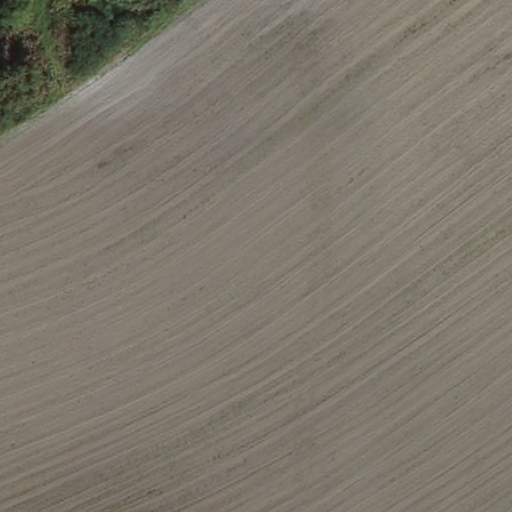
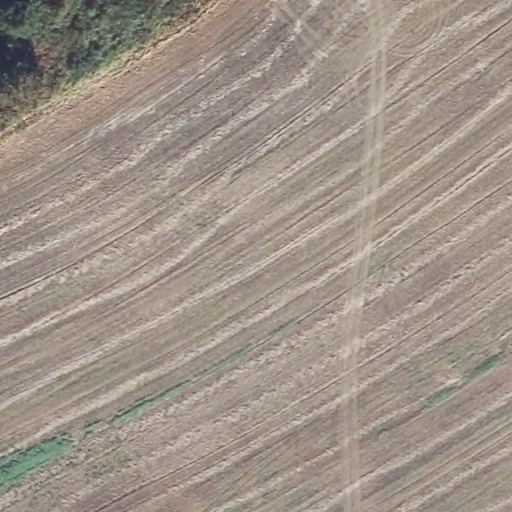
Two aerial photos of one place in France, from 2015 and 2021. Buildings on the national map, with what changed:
[]

